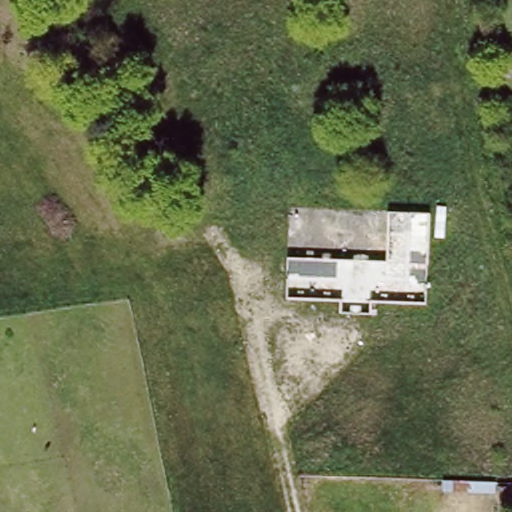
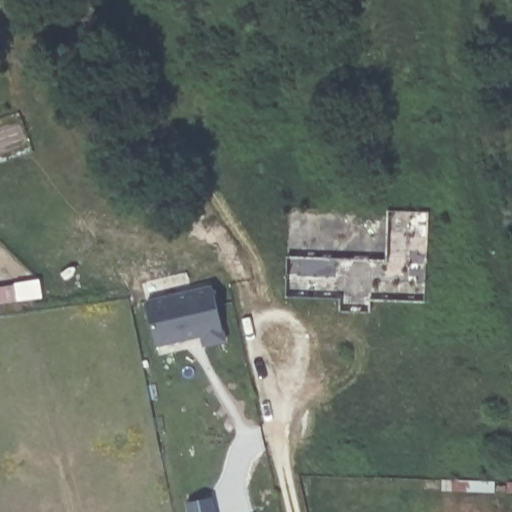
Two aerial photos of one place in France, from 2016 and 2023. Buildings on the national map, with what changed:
unchanged [(386,258),(388,209),(427,210),(426,303),(370,302),(370,311),(340,310),(340,298),(285,295),(286,256),(386,258)]
new [(14,283),(41,279),(44,299),(0,305),(0,287),(15,285),(14,283)]
new [(212,287),(222,332),(225,332),(228,343),(204,348),(202,338),(156,348),(145,301),(212,287)]
new [(212,512),(186,512),(185,504),(210,500),(212,512)]

